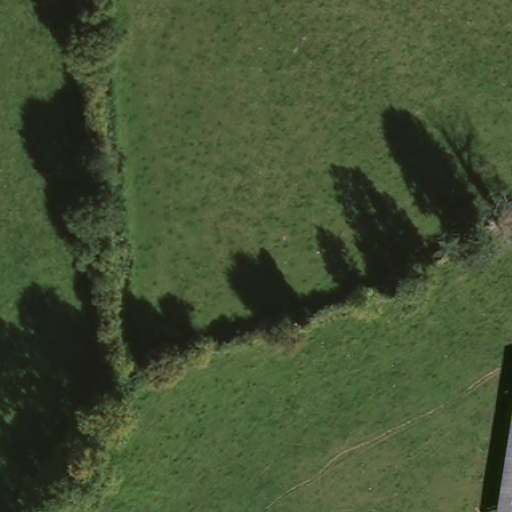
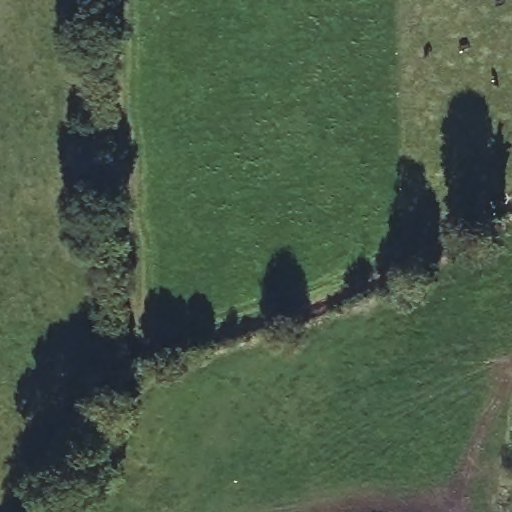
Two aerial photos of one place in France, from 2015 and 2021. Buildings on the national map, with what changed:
demolished [(512,415),(512,512),(497,512),(512,415)]

